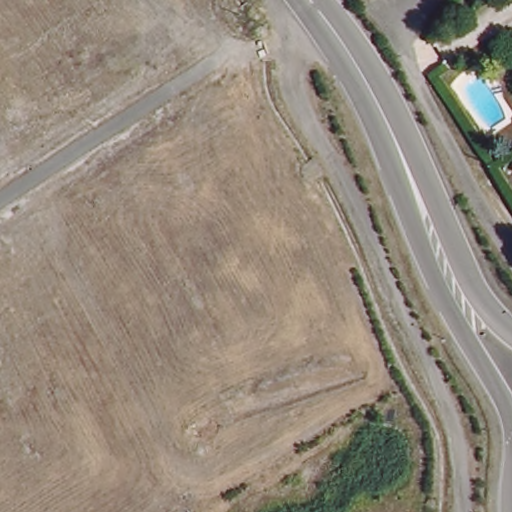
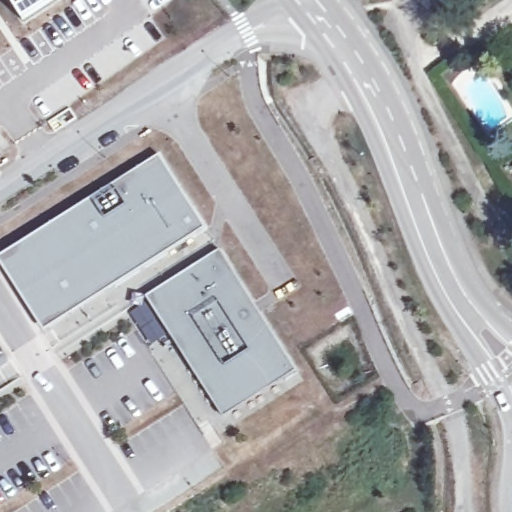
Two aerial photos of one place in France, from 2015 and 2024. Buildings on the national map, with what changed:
new [(23,22),(9,0),(60,0),(23,22)]
new [(23,301),(0,264),(0,256),(159,154),(206,228),(115,286),(43,332),(23,301)]
new [(170,336),(146,297),(220,250),(297,372),(285,381),(223,420),(170,336)]
new [(5,356),(0,360),(0,348),(5,356)]

